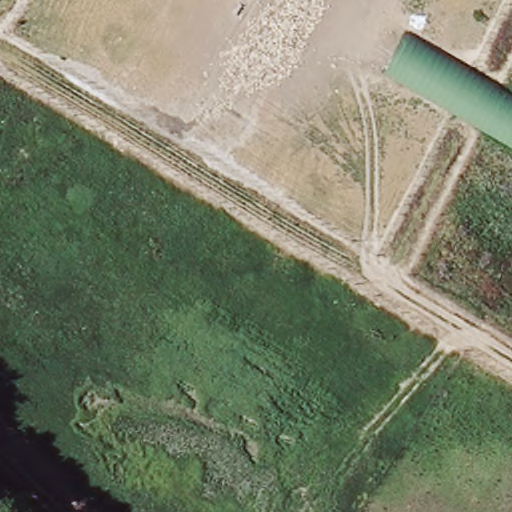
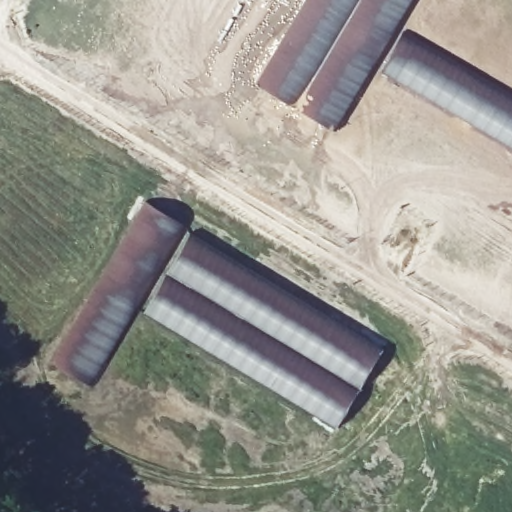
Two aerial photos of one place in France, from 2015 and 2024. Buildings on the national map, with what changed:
new [(337,130),(254,82),(304,0),(413,0),(337,130)]
unchanged [(404,32),(512,94),(512,146),(382,70),(404,32)]
new [(381,350),(337,426),(139,312),(95,386),(51,363),(146,202),(381,350)]

